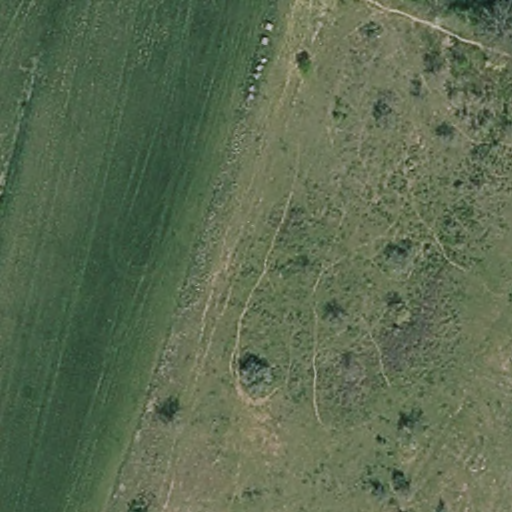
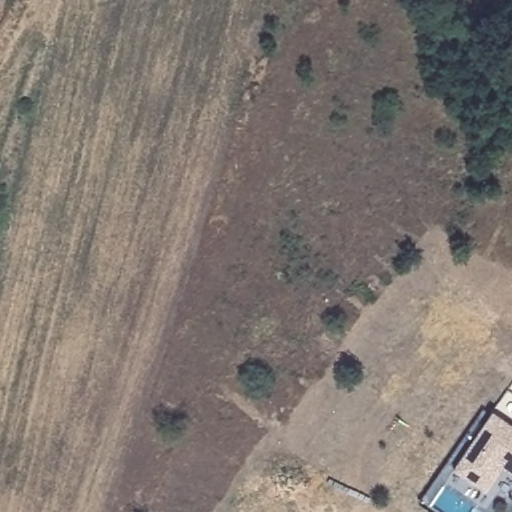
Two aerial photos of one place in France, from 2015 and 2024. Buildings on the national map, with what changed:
new [(492,411),(512,424),(512,472),(502,465),(486,489),(453,467),(492,411)]

